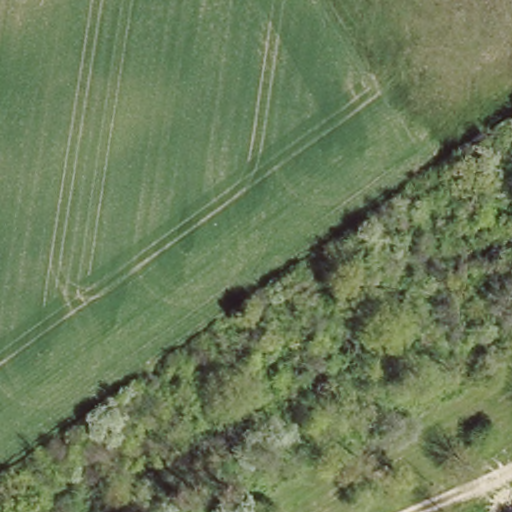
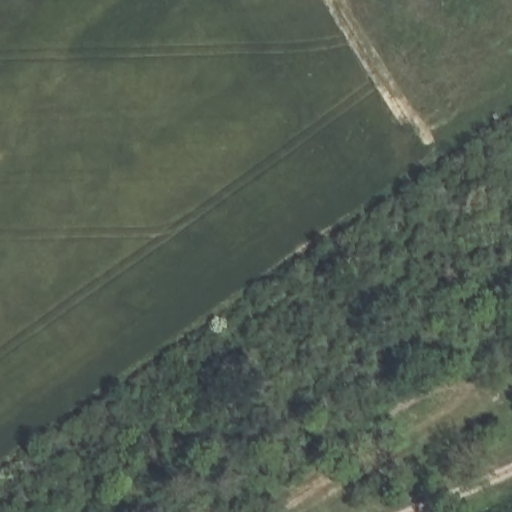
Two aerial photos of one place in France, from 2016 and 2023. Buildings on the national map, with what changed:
unchanged [(512,512),(503,512),(512,507),(512,512)]

